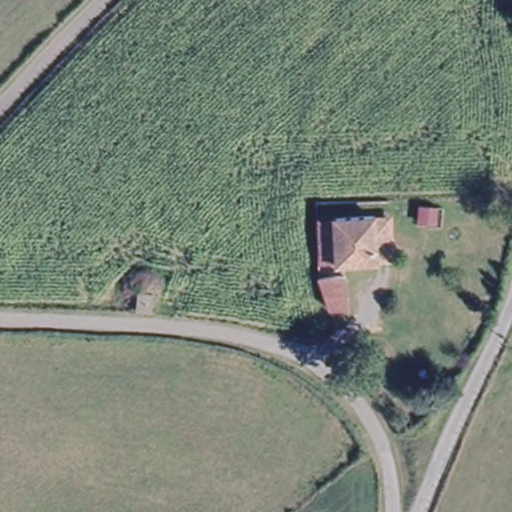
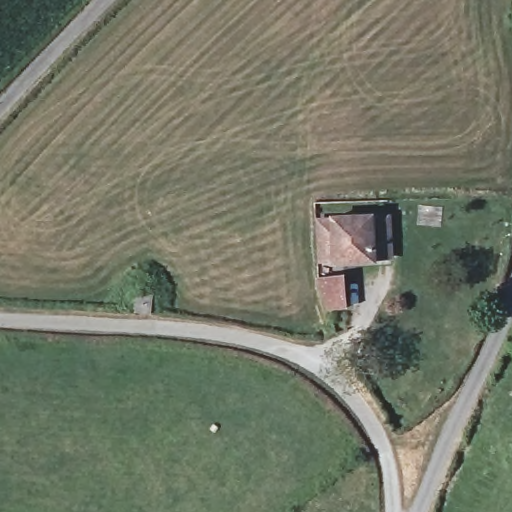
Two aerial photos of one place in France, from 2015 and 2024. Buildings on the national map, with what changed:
unchanged [(341,265),(332,219),(362,211),(365,227),(380,224),(386,254),(370,258),(341,265)]
unchanged [(343,308),(334,310),(328,278),(337,279),(343,308)]
unchanged [(311,283),(322,281),(334,310),(325,312),(311,283)]

